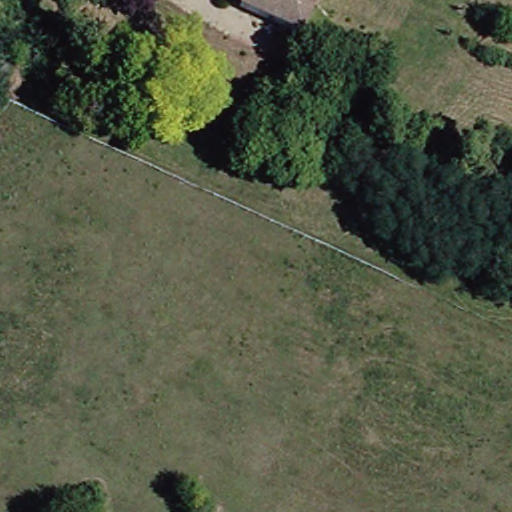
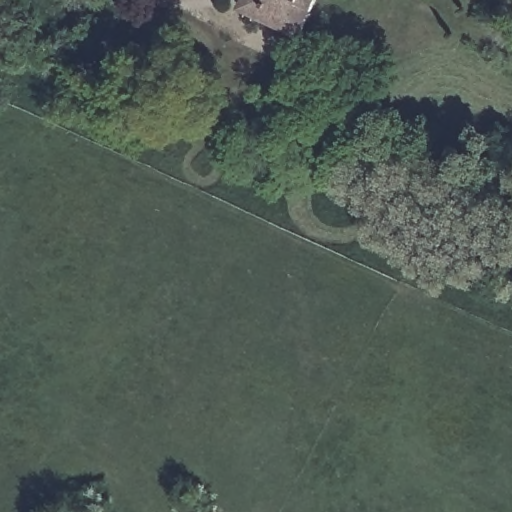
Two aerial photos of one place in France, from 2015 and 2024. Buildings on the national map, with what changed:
unchanged [(301,35),(237,6),(241,0),(319,0),(301,35)]

